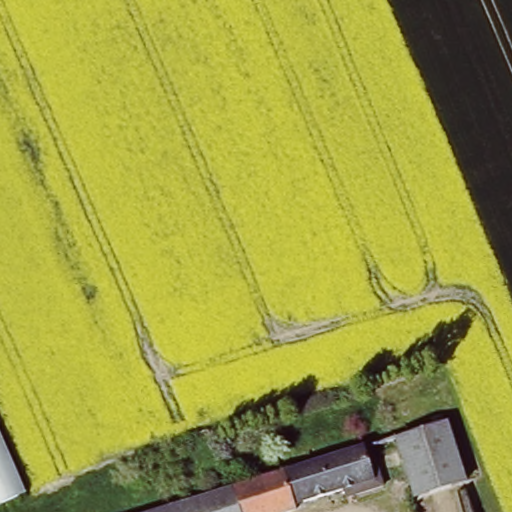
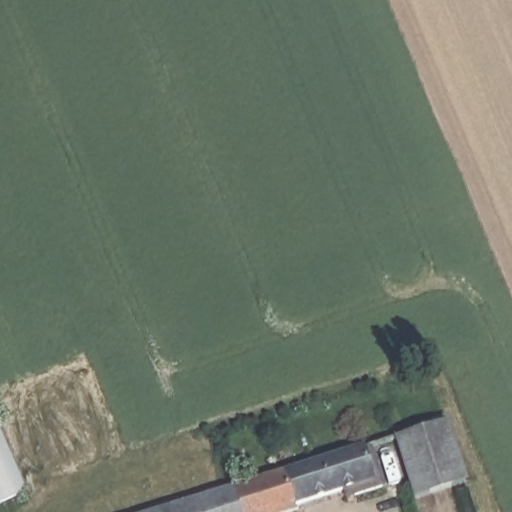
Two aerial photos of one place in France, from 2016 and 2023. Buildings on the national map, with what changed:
unchanged [(467,480),(416,498),(393,438),(437,424),(444,422),(450,437),(467,480)]
unchanged [(28,497),(0,507),(0,429),(28,497)]
unchanged [(364,482),(286,507),(288,512),(229,512),(221,489),(351,448),(364,482)]
unchanged [(168,506),(221,489),(229,512),(150,512),(168,506)]

